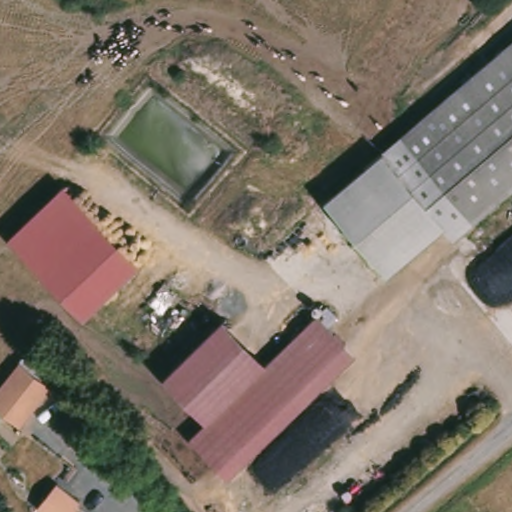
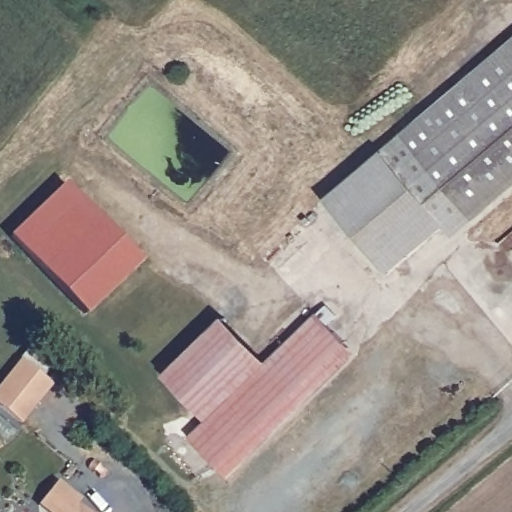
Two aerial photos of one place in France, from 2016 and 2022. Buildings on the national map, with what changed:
unchanged [(410,128),(512,46),(512,189),(481,215),(461,231),(452,219),(472,203),(410,128)]
unchanged [(452,219),(407,255),(393,267),(342,202),(334,193),(410,128),(472,203),(452,219)]
unchanged [(70,185),(144,261),(89,316),(14,238),(70,185)]
unchanged [(338,307),(349,317),(339,326),(347,334),(217,461),(199,443),(219,424),(279,365),(338,307)]
unchanged [(279,365),(219,424),(174,380),(234,322),(279,365)]
unchanged [(357,346),(228,471),(217,461),(347,334),(357,346)]
unchanged [(24,426),(0,407),(0,391),(26,360),(57,384),(24,426)]
unchanged [(47,507),(65,485),(89,504),(86,509),(90,512),(53,512),(47,507)]

